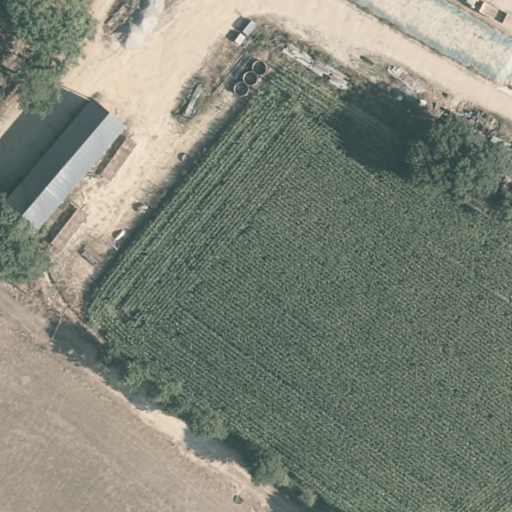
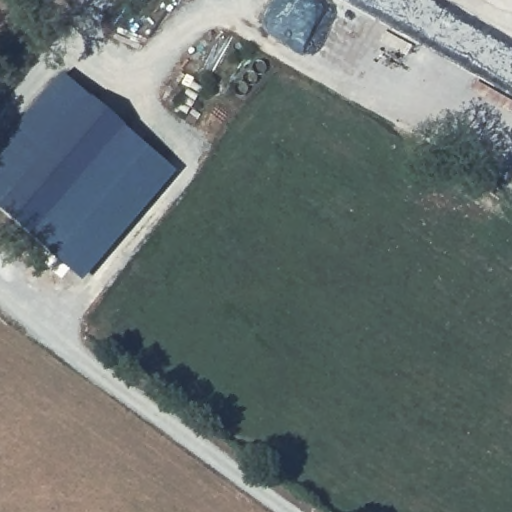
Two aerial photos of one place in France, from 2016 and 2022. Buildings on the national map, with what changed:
new [(0,208),(0,149),(64,75),(94,100),(0,208)]
unchanged [(126,125),(33,236),(0,211),(0,208),(94,100),(126,125)]
new [(84,282),(32,237),(33,236),(125,126),(178,173),(84,282)]

